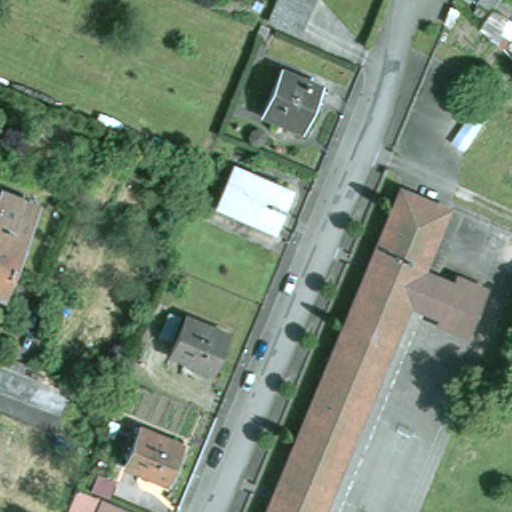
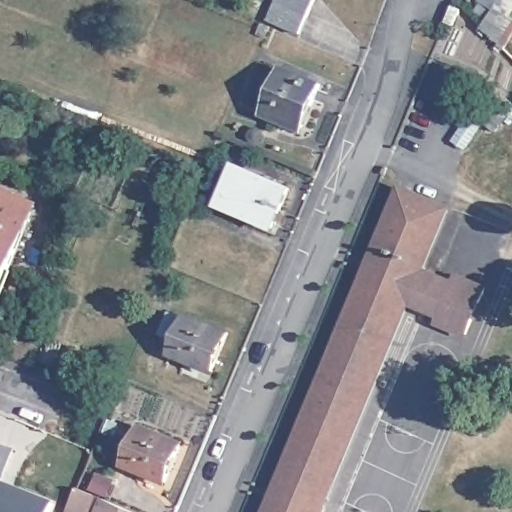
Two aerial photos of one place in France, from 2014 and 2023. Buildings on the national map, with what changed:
unchanged [(281,0),(317,0),(305,29),(274,15),(281,0)]
unchanged [(508,17),(505,15),(499,25),(488,19),(494,8),(480,0),(512,0),(512,10),(508,17)]
unchanged [(274,22),(270,32),(260,29),(264,21),(265,18),(274,22)]
unchanged [(264,113),(282,68),(320,84),(302,127),(279,117),(277,119),(264,113)]
unchanged [(481,123),(465,147),(454,140),(470,115),(481,123)]
unchanged [(235,165),(290,189),(274,227),(219,205),(235,165)]
unchanged [(404,188),(454,209),(430,265),(430,267),(380,246),(404,188)]
unchanged [(29,202),(35,205),(17,250),(0,291),(0,198),(2,191),(29,202)]
unchanged [(380,246),(430,267),(415,304),(414,305),(365,284),(380,246)]
unchanged [(430,267),(459,281),(464,272),(502,291),(479,336),(417,305),(415,304),(430,267)]
unchanged [(414,305),(334,497),(285,476),(365,284),(414,305)]
unchanged [(187,314),(227,331),(212,370),(170,353),(187,314)]
unchanged [(457,403),(483,415),(472,441),(447,430),(457,403)]
unchanged [(165,481),(125,465),(140,425),(181,442),(165,481)]
new [(5,480),(56,500),(51,512),(0,512),(0,442),(17,448),(5,480)]
unchanged [(327,512),(270,512),(285,476),(334,497),(327,512)]
unchanged [(92,512),(87,512),(74,506),(82,486),(100,493),(92,512)]
unchanged [(145,512),(104,512),(110,497),(145,512)]

